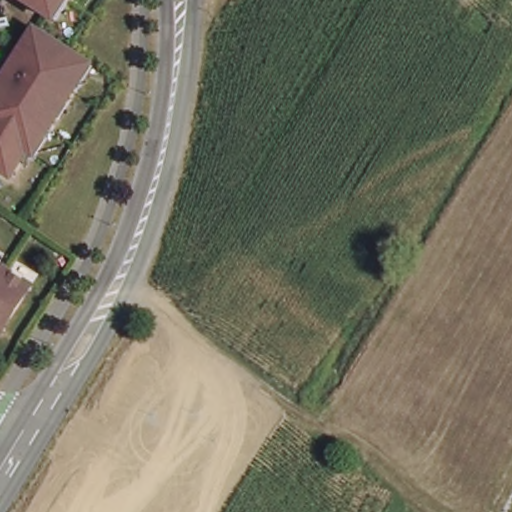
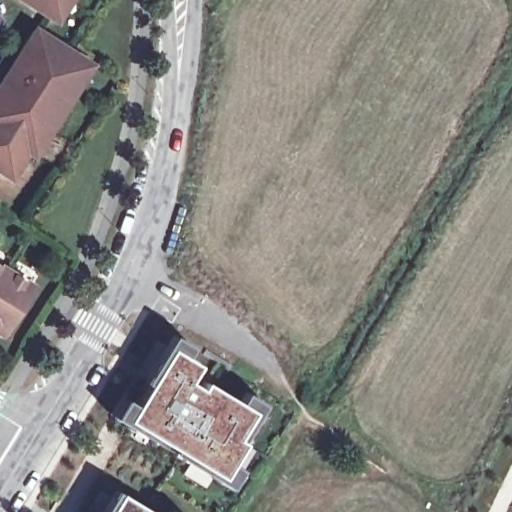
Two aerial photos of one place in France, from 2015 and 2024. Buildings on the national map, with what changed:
unchanged [(79,6),(67,25),(60,21),(28,0),(82,0),(79,6)]
unchanged [(87,62),(93,66),(83,81),(68,105),(64,103),(55,116),(60,118),(55,127),(45,141),(37,155),(30,151),(25,160),(14,177),(5,172),(0,169),(0,90),(2,87),(0,86),(0,72),(9,58),(17,64),(37,31),(87,62)]
unchanged [(0,329),(0,267),(35,287),(7,333),(0,329)]
new [(169,347),(175,337),(190,346),(184,356),(197,364),(187,380),(199,387),(203,381),(237,402),(243,392),(257,401),(251,410),(235,437),(241,442),(228,463),(220,476),(125,418),(134,404),(169,347)]
new [(127,399),(134,404),(125,418),(220,476),(228,463),(238,469),(227,487),(115,418),(127,399)]
new [(151,512),(105,512),(117,491),(151,512)]
new [(80,512),(77,512),(77,510),(80,512)]
new [(173,512),(170,512),(170,510),(173,512)]

